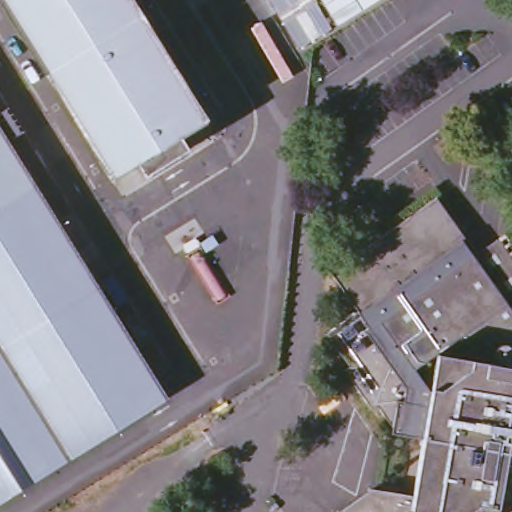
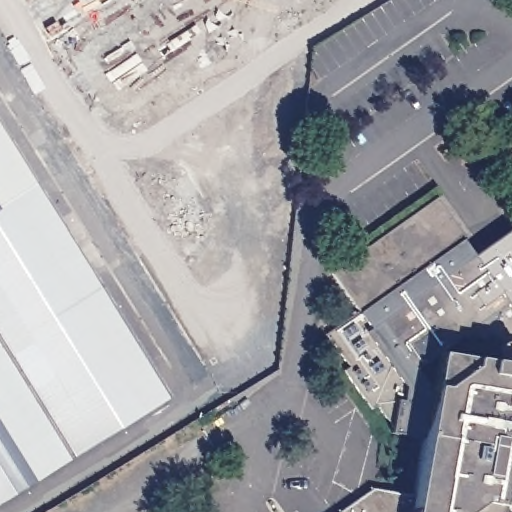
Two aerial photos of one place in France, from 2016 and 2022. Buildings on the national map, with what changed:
demolished [(188,157),(145,184),(137,171),(112,185),(0,3),(0,0),(128,0),(207,127),(180,144),(188,157)]
unchanged [(165,395),(0,498),(0,126),(165,395)]
unchanged [(360,500),(376,489),(415,497),(424,440),(394,436),(395,428),(380,405),(374,409),(347,371),(352,366),(347,360),(329,332),(359,310),(334,272),(390,231),(439,196),(466,237),(462,240),(474,256),(507,302),(507,303),(512,310),(512,343),(460,335),(415,368),(432,392),(439,354),(510,365),(512,353),(512,512),(342,512),(360,500)]
unchanged [(512,300),(507,303),(507,302),(474,256),(500,238),(512,256),(512,300)]

